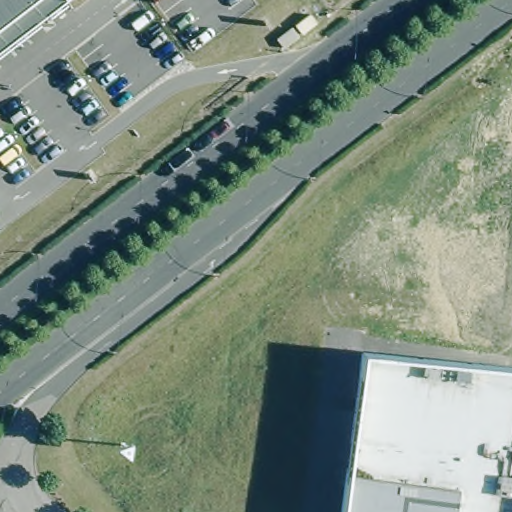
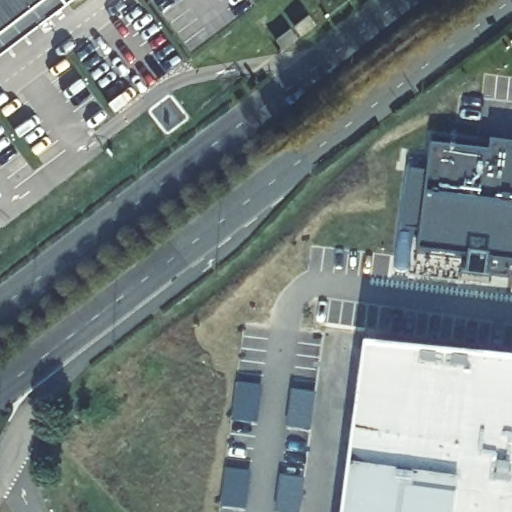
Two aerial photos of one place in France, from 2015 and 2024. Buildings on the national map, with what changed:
unchanged [(0,50),(0,0),(65,0),(0,50)]
new [(512,148),(512,269),(508,268),(506,281),(483,278),(482,286),(463,283),(465,261),(414,256),(417,234),(412,234),(406,276),(396,276),(411,164),(422,164),(420,176),(427,176),(432,139),(512,148)]
unchanged [(512,368),(512,512),(340,512),(362,353),(512,368)]

